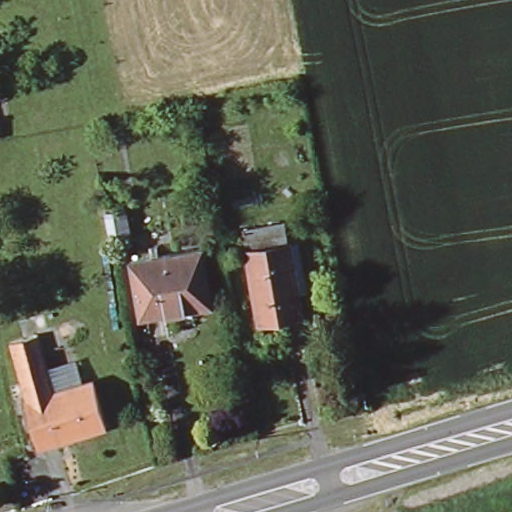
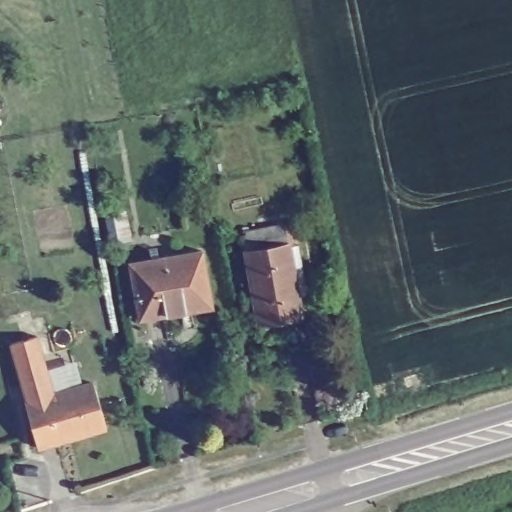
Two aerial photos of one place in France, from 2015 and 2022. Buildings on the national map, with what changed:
unchanged [(104,218),(122,215),(127,242),(109,245),(104,218)]
unchanged [(255,326),(237,235),(278,228),(282,248),(292,246),(302,295),(292,297),(297,318),(255,326)]
unchanged [(135,318),(125,261),(196,248),(205,305),(135,318)]
unchanged [(5,339),(32,332),(47,389),(22,397),(5,339)]
unchanged [(47,389),(87,378),(100,422),(60,434),(60,433),(47,389)]
unchanged [(31,441),(18,398),(22,397),(47,389),(60,433),(31,441)]

